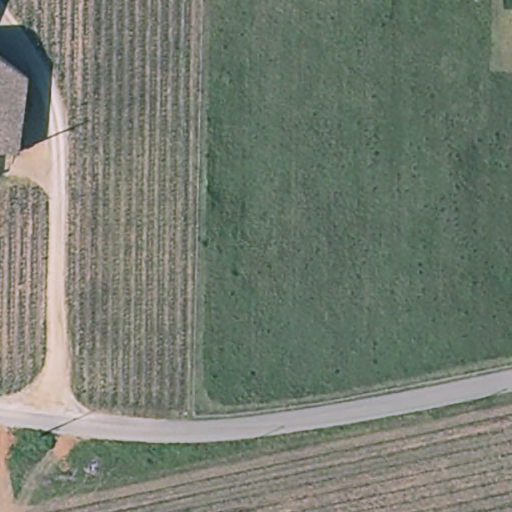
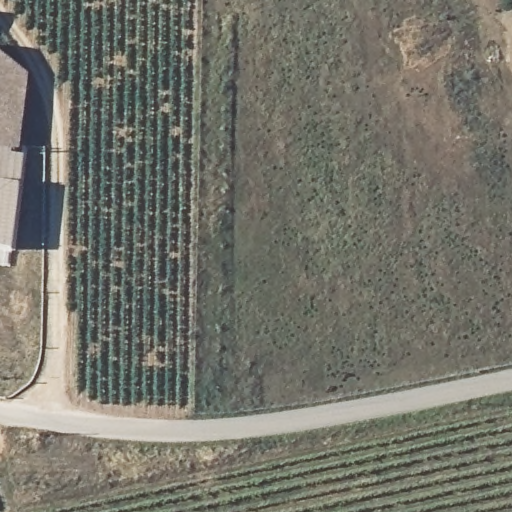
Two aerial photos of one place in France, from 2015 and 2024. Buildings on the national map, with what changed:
unchanged [(27,75),(17,149),(0,147),(0,55),(27,75)]
new [(21,185),(20,191),(0,190),(0,147),(13,148),(12,154),(24,155),(21,185)]
new [(20,191),(13,251),(0,251),(0,190),(20,191)]

